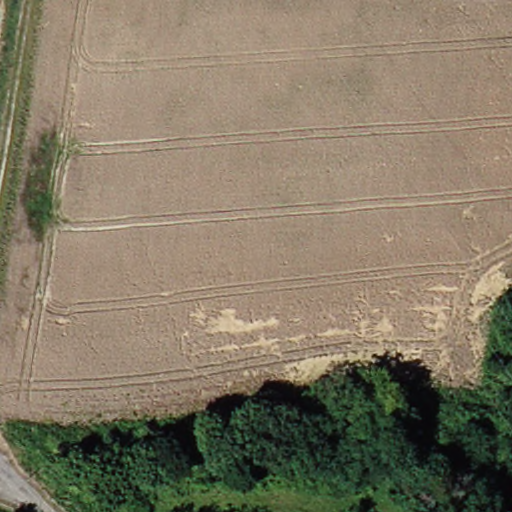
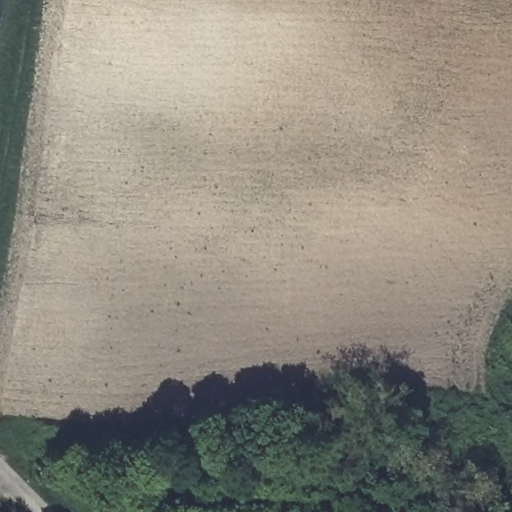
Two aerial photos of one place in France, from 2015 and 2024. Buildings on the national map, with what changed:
[]

